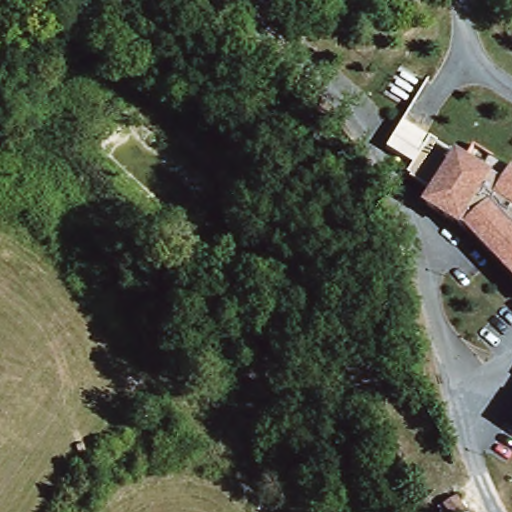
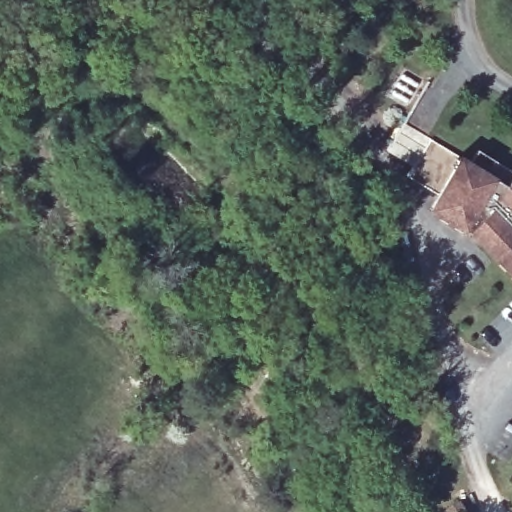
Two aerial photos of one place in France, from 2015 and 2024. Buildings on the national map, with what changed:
unchanged [(470,230),(468,231),(427,208),(435,194),(405,174),(427,137),(467,161),(475,148),(512,170),(512,275),(470,230)]

